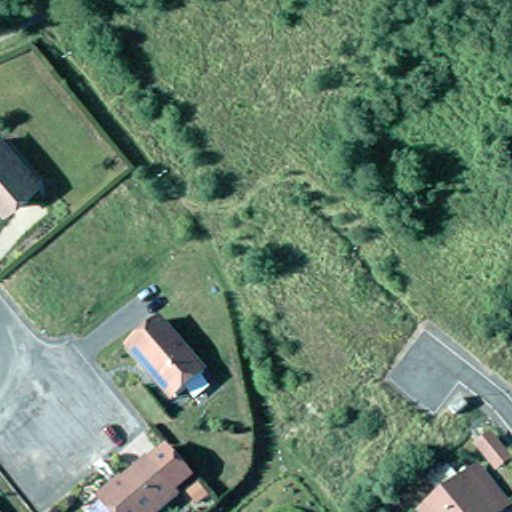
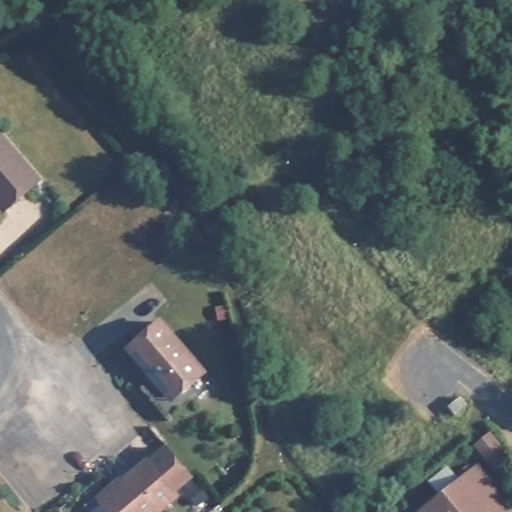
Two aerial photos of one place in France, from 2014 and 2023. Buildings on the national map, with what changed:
unchanged [(0,203),(0,136),(2,135),(5,138),(38,177),(3,207),(0,203)]
unchanged [(154,377),(127,347),(159,319),(205,372),(177,397),(173,400),(154,377)]
unchanged [(153,436),(165,452),(157,456),(147,441),(153,436)]
unchanged [(469,453),(482,442),(499,462),(487,472),(469,453)]
unchanged [(137,460),(167,494),(145,512),(104,512),(92,498),(137,460)]
unchanged [(468,470),(472,473),(478,467),(508,501),(502,507),(496,512),(420,512),(468,470)]

